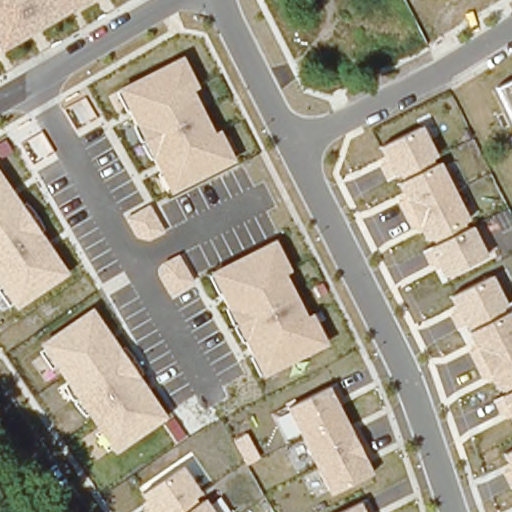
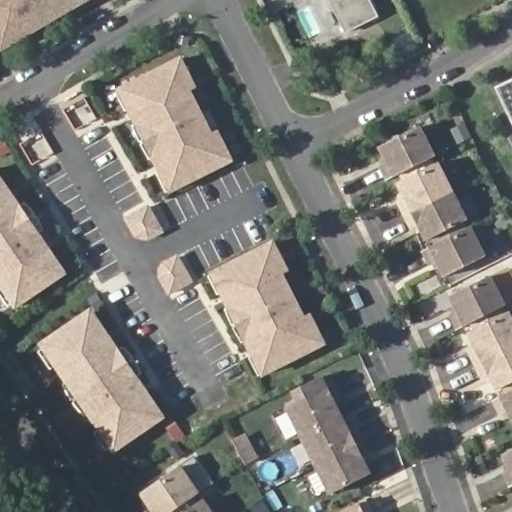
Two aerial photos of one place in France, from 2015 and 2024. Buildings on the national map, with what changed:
unchanged [(0,48),(0,0),(96,0),(3,55),(0,48)]
new [(328,0),(370,0),(379,17),(345,34),(328,0)]
unchanged [(199,88),(193,91),(214,133),(221,129),(236,161),(170,195),(117,89),(183,56),(199,88)]
unchanged [(496,89),(512,81),(512,121),(496,89)]
unchanged [(488,257),(446,280),(438,264),(432,267),(423,250),(429,247),(421,230),(412,234),(397,200),(404,197),(394,178),(388,181),(380,165),(386,163),(379,148),(422,126),(488,257)]
unchanged [(27,200),(46,228),(38,234),(65,270),(12,312),(0,294),(0,176),(18,206),(27,200)]
unchanged [(148,242),(135,239),(125,219),(151,205),(167,232),(148,242)]
unchanged [(208,273),(274,239),(291,272),(286,274),(307,317),(313,314),(329,345),(264,379),(208,273)]
unchanged [(195,282),(170,297),(158,279),(163,263),(179,254),(195,282)]
unchanged [(512,313),(512,423),(509,417),(503,419),(494,401),(499,398),(490,380),(484,383),(467,351),(474,347),(464,326),(457,329),(450,315),(457,312),(450,297),(493,275),(512,313)]
unchanged [(117,348),(125,343),(146,374),(139,381),(164,416),(109,455),(35,351),(93,309),(117,348)]
unchanged [(373,474),(331,496),(287,409),(329,387),(373,474)]
unchanged [(509,489),(500,471),(508,467),(501,454),(512,449),(512,487),(509,489)]
unchanged [(211,512),(148,512),(146,511),(153,507),(144,493),(182,469),(211,512)]
unchanged [(365,512),(341,512),(360,503),(365,512)]

